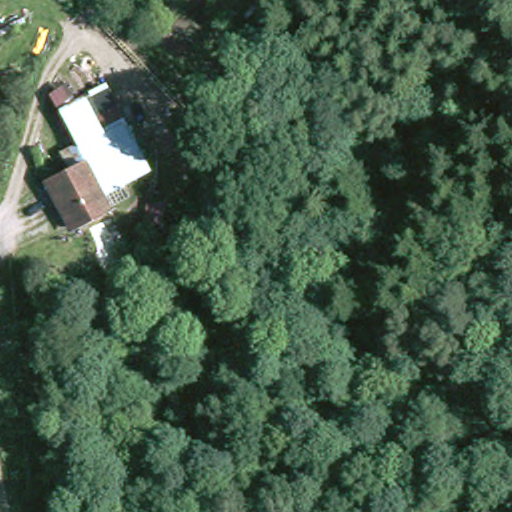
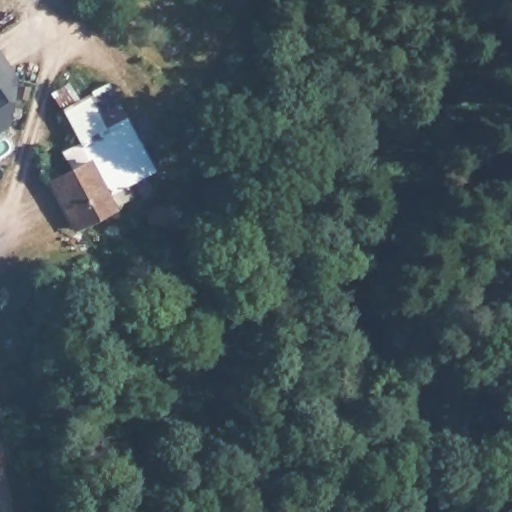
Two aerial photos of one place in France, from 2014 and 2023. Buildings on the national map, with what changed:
new [(16,75),(8,124),(0,129),(0,51),(16,75)]
unchanged [(62,115),(103,90),(151,166),(107,192),(62,115)]
unchanged [(113,212),(75,232),(50,187),(84,165),(113,212)]

